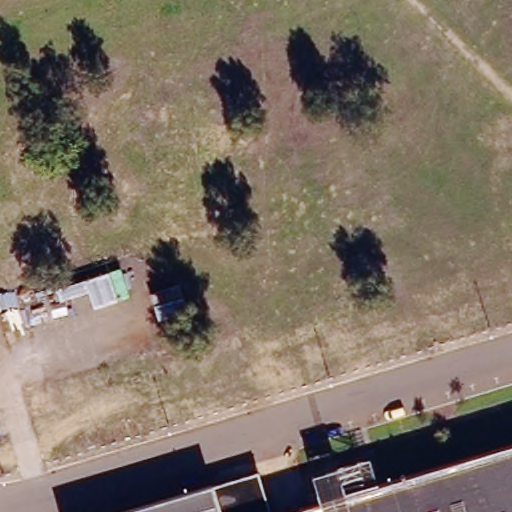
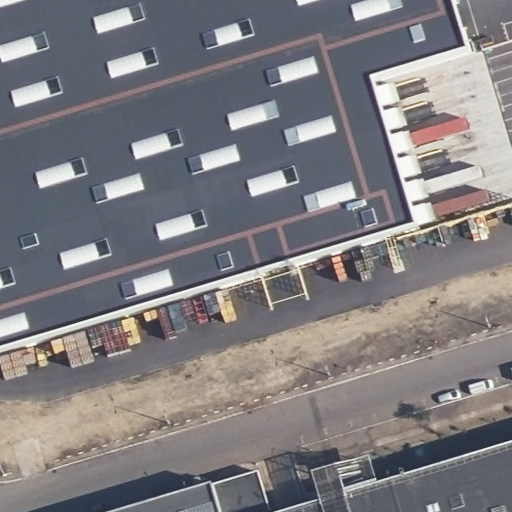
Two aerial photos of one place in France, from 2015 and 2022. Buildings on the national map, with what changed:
new [(0,353),(0,0),(356,0),(424,226),(0,353)]
new [(460,0),(478,60),(406,81),(450,222),(424,226),(356,0),(460,0)]
unchanged [(512,447),(512,512),(296,512),(512,447)]
unchanged [(210,488),(256,475),(268,512),(130,512),(210,488)]

